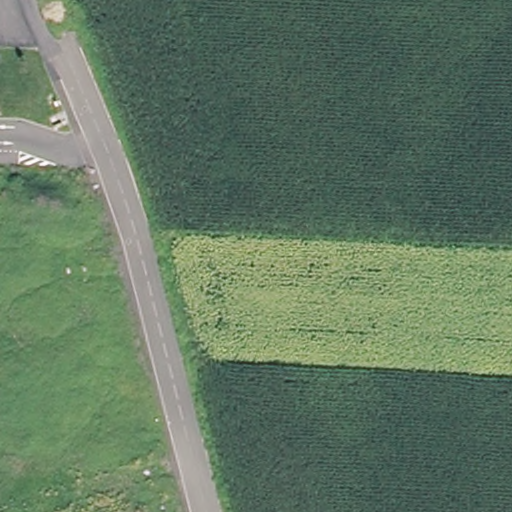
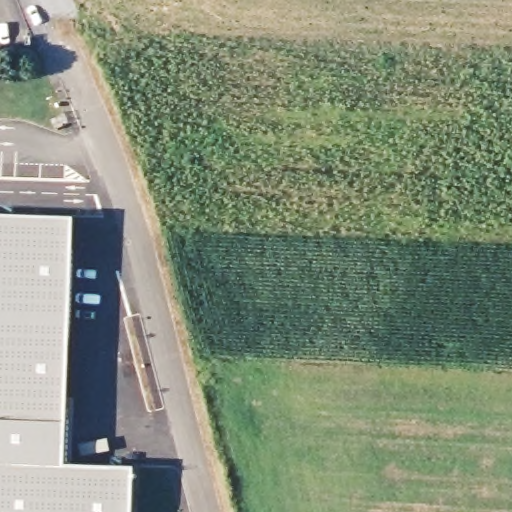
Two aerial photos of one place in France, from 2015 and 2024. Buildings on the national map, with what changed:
new [(71,215),(70,289),(61,463),(131,465),(130,512),(0,512),(0,212),(71,215)]

